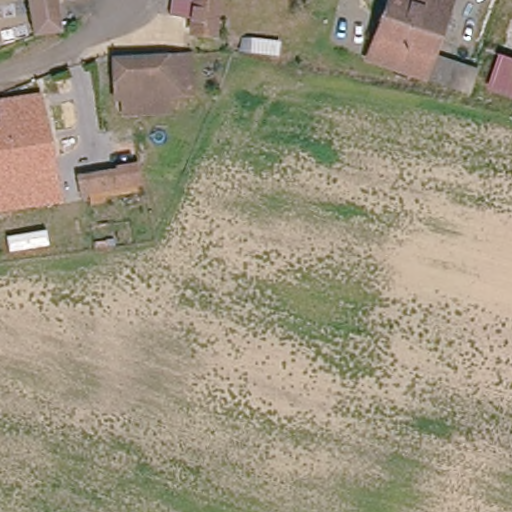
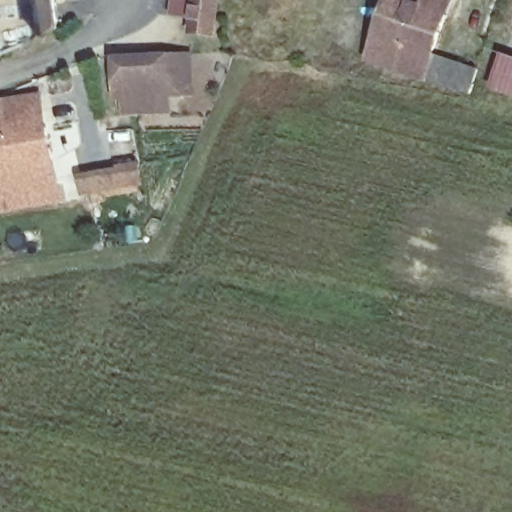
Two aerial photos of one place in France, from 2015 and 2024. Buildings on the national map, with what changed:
unchanged [(25,0),(53,0),(58,33),(32,40),(25,0)]
unchanged [(213,34),(185,33),(190,0),(216,0),(213,34)]
unchanged [(368,58),(389,0),(454,0),(433,51),(422,78),(368,58)]
unchanged [(433,51),(479,68),(470,95),(422,78),(433,51)]
unchanged [(123,121),(123,108),(113,108),(113,53),(165,55),(179,55),(193,56),(193,109),(180,109),(167,109),(168,120),(139,120),(123,121)]
unchanged [(492,90),(504,56),(512,58),(512,96),(492,90)]
unchanged [(3,100),(40,94),(55,183),(57,203),(0,214),(0,127),(5,126),(3,100)]
unchanged [(138,165),(140,185),(107,191),(108,197),(93,199),(93,196),(80,197),(77,180),(116,173),(115,167),(119,167),(138,165)]

